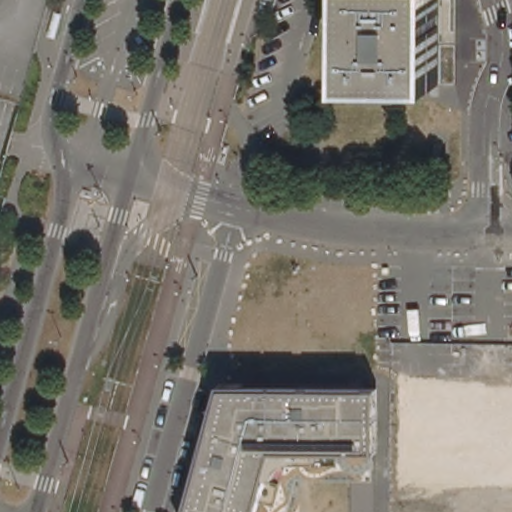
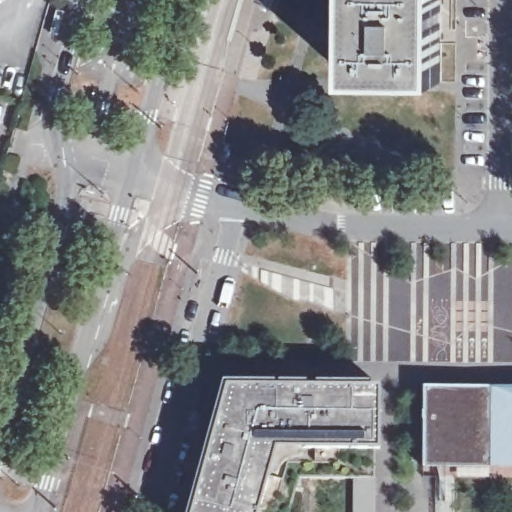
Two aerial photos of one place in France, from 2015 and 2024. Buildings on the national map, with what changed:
unchanged [(440,80),(353,79),(354,0),(441,0),(440,80)]
unchanged [(53,35),(52,34),(57,15),(58,15),(65,17),(59,36),(53,35)]
unchanged [(292,512),(196,512),(227,387),(379,390),(379,450),(377,480),(301,479),(292,512)]
new [(422,387),(491,387),(512,388),(512,468),(490,468),(423,468),(422,387)]

